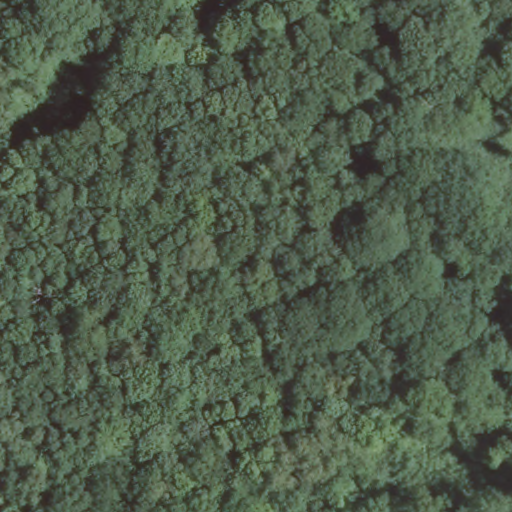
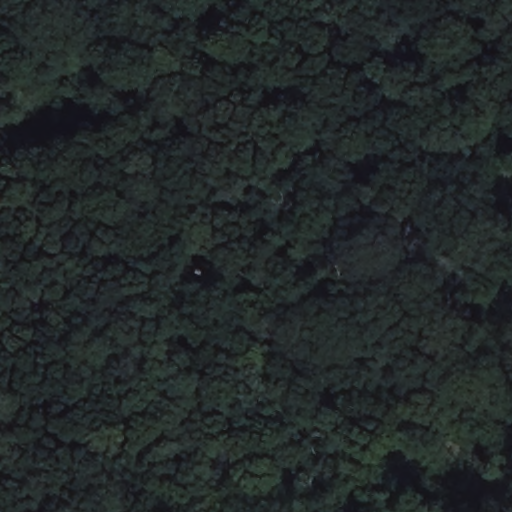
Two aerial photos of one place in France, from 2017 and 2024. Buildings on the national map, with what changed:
[]

